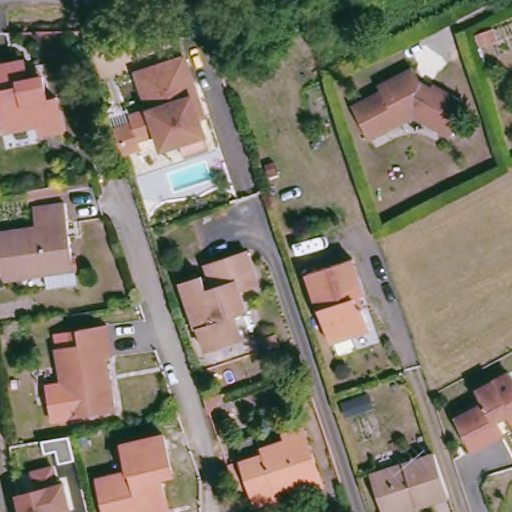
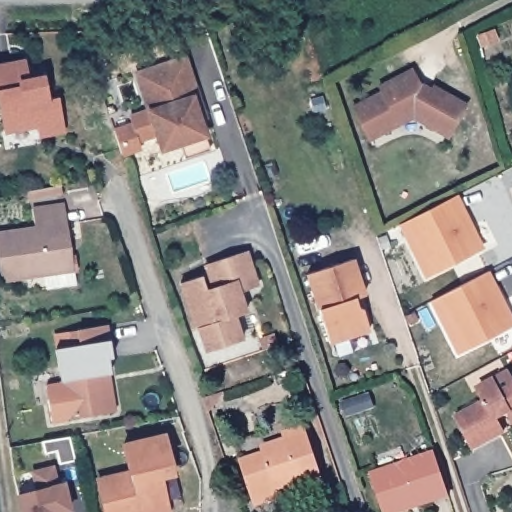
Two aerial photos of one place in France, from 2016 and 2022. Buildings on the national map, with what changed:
unchanged [(133,126),(131,119),(155,111),(141,75),(187,59),(200,97),(193,100),(207,137),(175,147),(173,142),(162,145),(160,139),(142,145),(145,151),(124,157),(121,149),(115,132),(133,126)]
unchanged [(42,77),(48,101),(59,98),(66,132),(44,136),(42,126),(11,132),(2,94),(0,94),(0,66),(20,62),(25,81),(42,77)]
unchanged [(417,80),(419,82),(415,90),(430,97),(433,91),(468,109),(452,138),(412,115),(409,123),(372,141),(357,112),(354,108),(383,92),(380,86),(412,71),(417,80)]
new [(397,225),(457,194),(484,247),(425,277),(397,225)]
unchanged [(78,272),(80,286),(52,291),(49,277),(25,282),(22,268),(4,271),(0,247),(0,234),(39,228),(37,212),(68,207),(72,230),(60,232),(62,238),(72,237),(76,258),(80,258),(82,272),(78,272)]
unchanged [(261,287),(247,292),(253,312),(238,317),(246,337),(212,349),(205,327),(202,328),(183,282),(204,275),(209,287),(217,285),(216,278),(225,275),(220,257),(247,248),(261,287)]
unchanged [(352,257),(364,293),(357,296),(369,329),(330,343),(307,272),(352,257)]
new [(512,315),(512,327),(458,354),(430,301),(489,272),(512,315)]
unchanged [(116,356),(110,357),(120,412),(77,419),(71,387),(62,387),(55,347),(81,342),(79,331),(110,325),(116,356)]
unchanged [(512,378),(512,416),(496,424),(503,436),(474,451),(458,420),(485,405),(478,390),(510,373),(512,378)]
unchanged [(329,496),(300,506),(295,494),(283,497),(285,502),(262,508),(249,469),(269,462),(267,455),(292,446),(290,438),(307,433),(329,496)]
unchanged [(417,509),(415,503),(387,512),(384,512),(382,507),(370,473),(433,452),(450,497),(417,509)]
unchanged [(17,495),(19,494),(37,489),(32,472),(52,466),(57,483),(63,482),(68,501),(70,507),(55,512),(22,512),(20,503),(17,495)]
unchanged [(164,512),(143,512),(142,512),(140,512),(104,512),(97,482),(157,467),(168,511),(164,512)]

